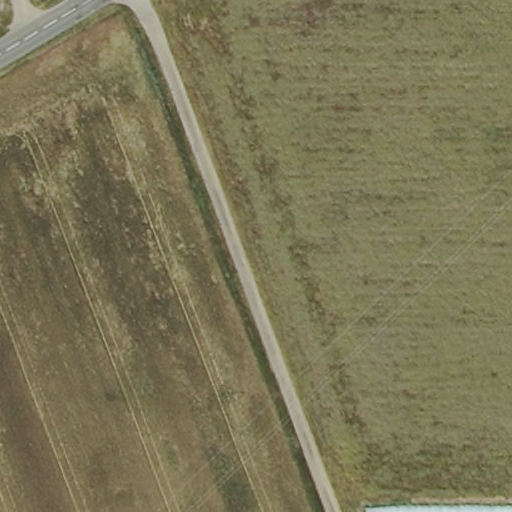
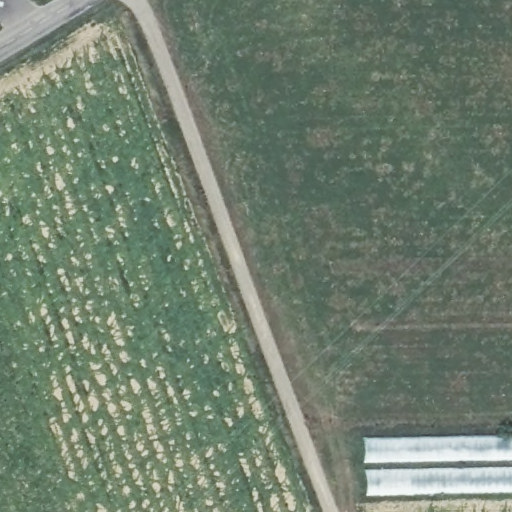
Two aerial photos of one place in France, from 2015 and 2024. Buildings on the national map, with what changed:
new [(368,473),(367,440),(512,437),(512,493),(370,495),(368,473)]

